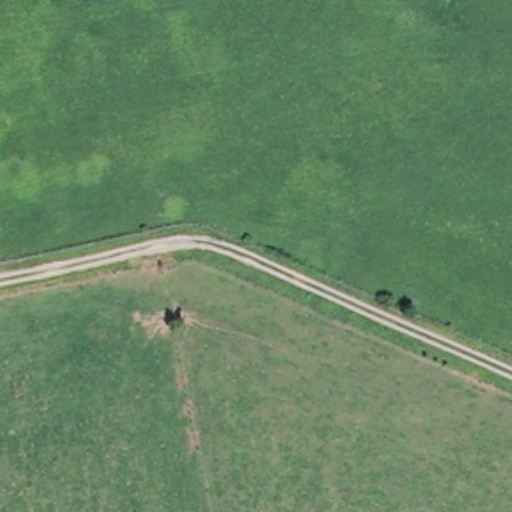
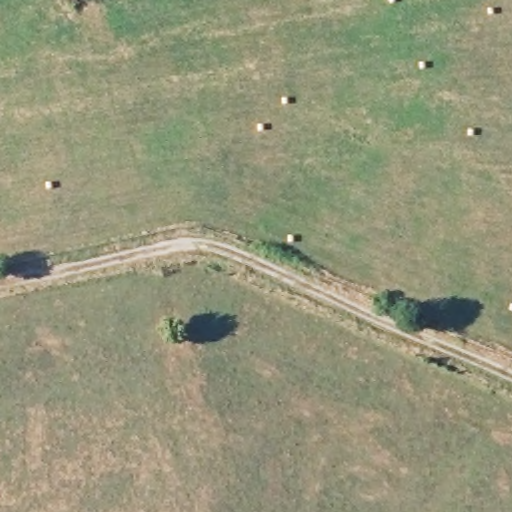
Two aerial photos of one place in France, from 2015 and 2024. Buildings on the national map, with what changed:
unchanged [(67,0),(86,0),(69,5),(67,0)]

